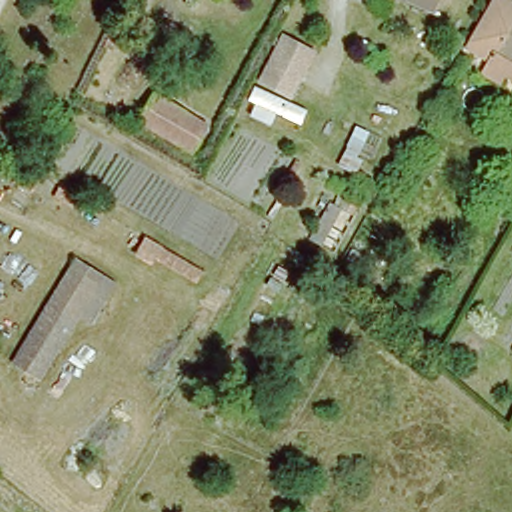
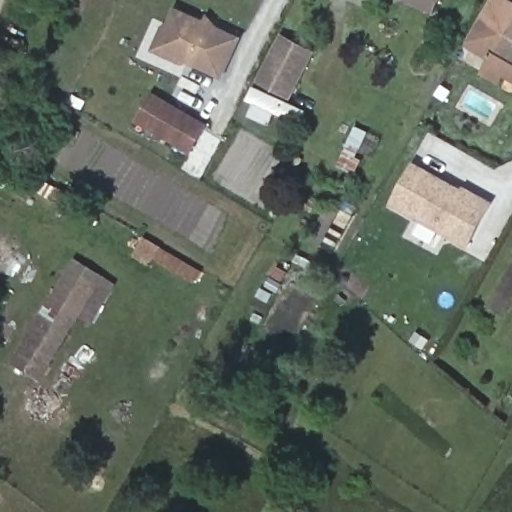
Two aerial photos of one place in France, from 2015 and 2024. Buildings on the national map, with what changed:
unchanged [(475,21),(487,1),(488,0),(512,0),(512,71),(504,67),(502,71),(500,75),(485,66),(492,54),(488,51),(475,43),(466,37),(474,24),(475,22),(475,21)]
new [(208,12),(218,25),(243,37),(223,80),(184,63),(182,66),(152,51),(164,23),(168,25),(176,6),(204,20),(208,12)]
unchanged [(313,54),(291,98),(261,83),(283,38),(313,54)]
unchanged [(192,143),(146,115),(157,94),(204,122),(192,143)]
new [(464,185),(495,202),(469,250),(389,204),(411,160),(462,189),(464,185)]
unchanged [(193,278),(156,256),(151,265),(128,249),(140,230),(202,266),(193,278)]
unchanged [(76,264),(121,285),(96,330),(83,324),(43,388),(11,370),(76,264)]

